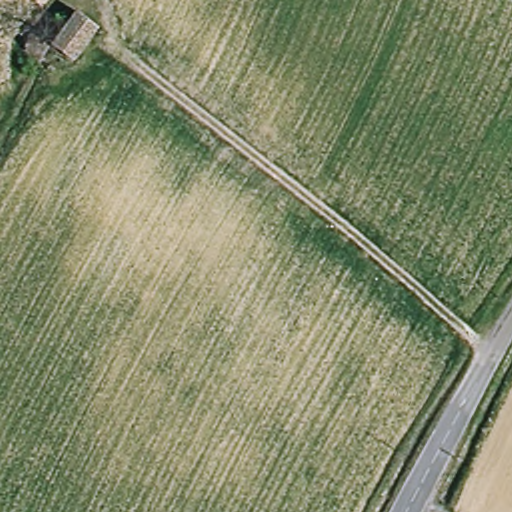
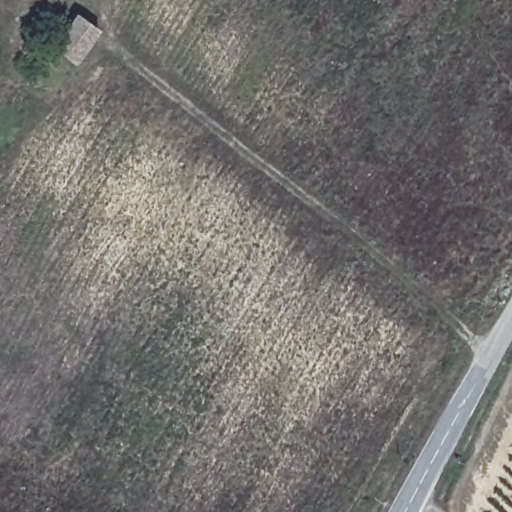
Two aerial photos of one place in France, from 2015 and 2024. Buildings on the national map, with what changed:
unchanged [(81,11),(101,29),(93,38),(72,58),(55,43),(81,11)]

